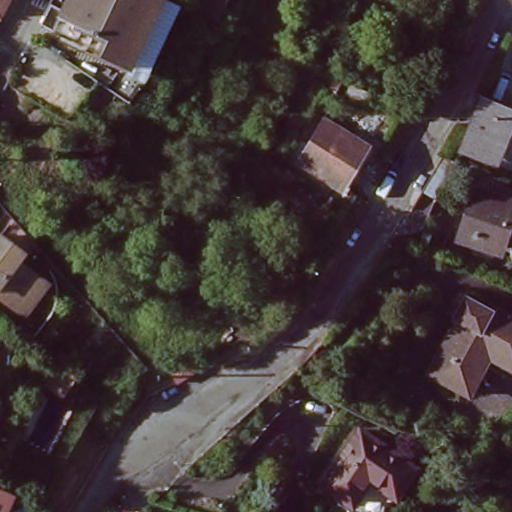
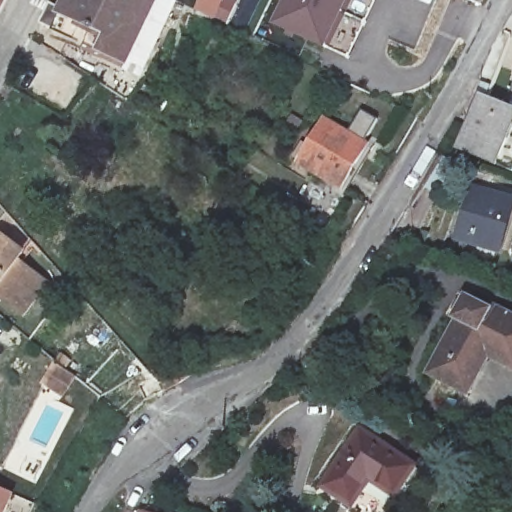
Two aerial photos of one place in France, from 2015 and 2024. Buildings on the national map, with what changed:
unchanged [(0,0),(6,0),(0,11),(0,0)]
unchanged [(54,30),(69,0),(153,0),(124,64),(54,30)]
unchanged [(203,0),(226,0),(221,10),(202,2),(203,0)]
new [(348,0),(328,44),(278,20),(288,0),(348,0)]
new [(377,0),(351,55),(328,44),(348,0),(377,0)]
unchanged [(483,157),(455,144),(470,102),(474,96),(503,109),(483,157)]
unchanged [(362,149),(339,188),(297,164),(318,125),(362,149)]
unchanged [(490,253),(465,238),(457,233),(472,208),(480,194),(512,213),(512,215),(508,221),(493,248),(490,253)]
unchanged [(0,303),(0,245),(17,258),(12,264),(28,278),(40,287),(17,315),(12,312),(0,303)]
unchanged [(510,374),(482,358),(460,396),(422,375),(450,324),(445,321),(458,302),(481,314),(484,310),(512,325),(512,372),(510,374)]
unchanged [(87,387),(95,393),(80,413),(72,407),(87,387)]
unchanged [(378,486),(364,474),(360,479),(344,501),(315,481),(325,466),(348,434),(355,425),(411,464),(410,465),(392,491),(390,494),(378,486)]
unchanged [(0,488),(19,494),(11,512),(0,512),(0,488)]

